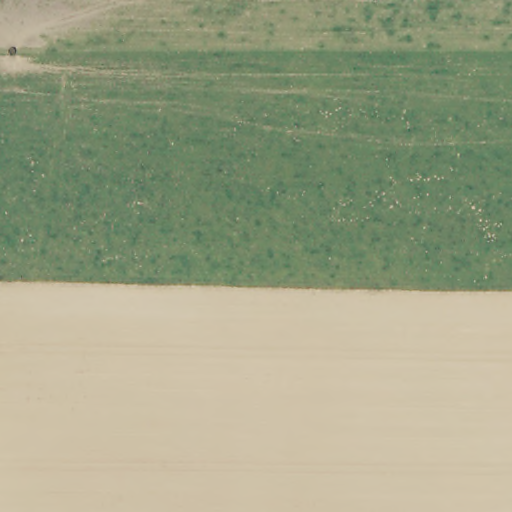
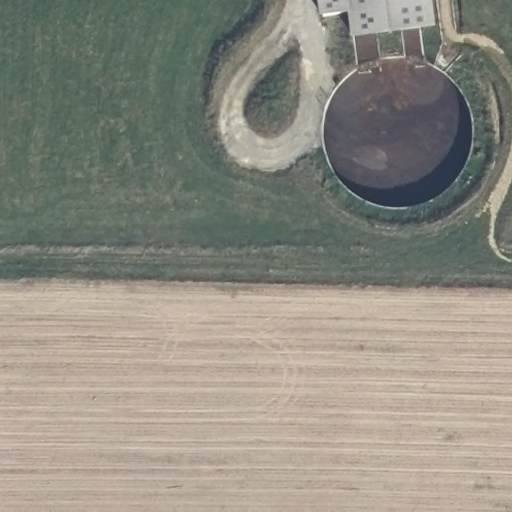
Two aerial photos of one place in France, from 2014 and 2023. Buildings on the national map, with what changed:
new [(433,26),(350,37),(350,11),(318,16),(316,0),(430,0),(433,26)]

